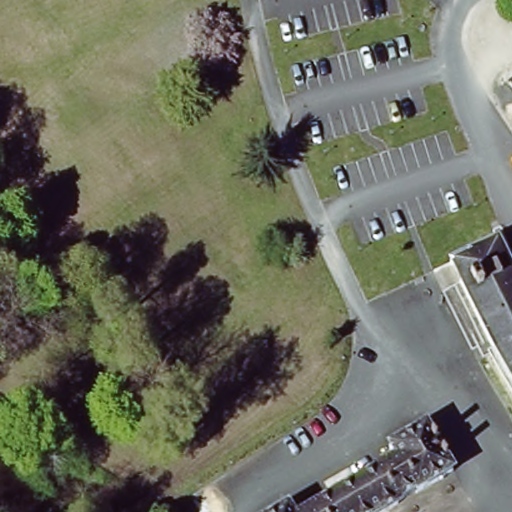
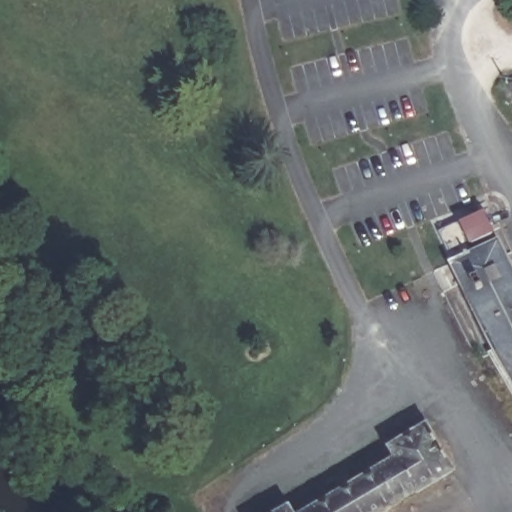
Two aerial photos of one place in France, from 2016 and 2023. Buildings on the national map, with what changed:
unchanged [(468,251),(497,238),(512,267),(512,388),(478,326),(450,266),(448,262),(468,251)]
unchanged [(392,444),(423,424),(454,472),(390,512),(306,512),(398,453),(392,444)]
unchanged [(282,512),(290,507),(294,512),(282,512)]

